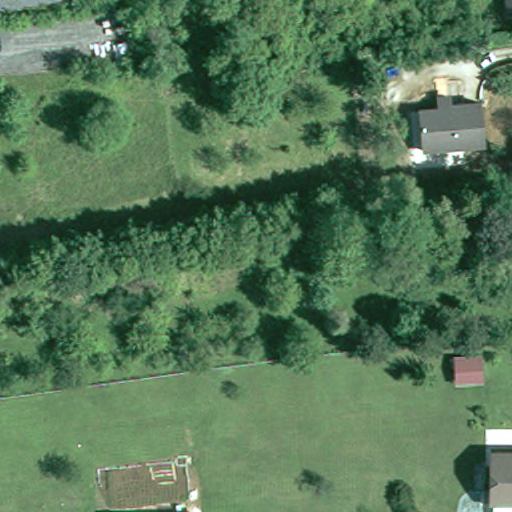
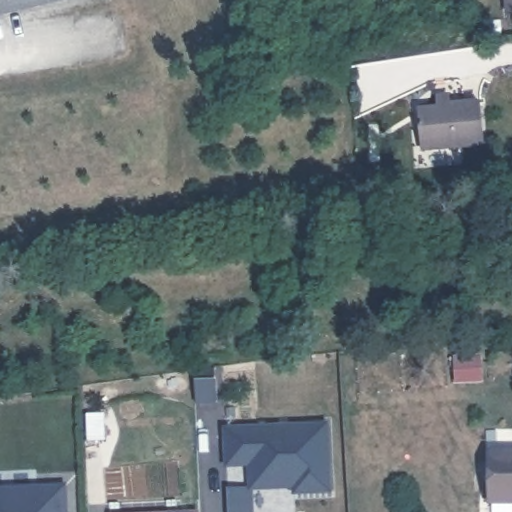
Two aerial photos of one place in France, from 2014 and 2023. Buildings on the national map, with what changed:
unchanged [(0,0),(42,0),(0,10),(0,0)]
unchanged [(512,0),(512,13),(510,13),(509,0),(512,0)]
unchanged [(425,150),(423,112),(441,110),(440,98),(452,98),(453,106),(483,104),(487,146),(425,150)]
unchanged [(315,237),(313,224),(334,221),(335,234),(315,237)]
unchanged [(461,257),(457,232),(480,229),(484,254),(461,257)]
new [(198,407),(196,384),(196,373),(216,371),(216,383),(218,406),(198,407)]
new [(253,476),(252,461),(229,462),(227,425),(330,420),(333,487),(296,489),(296,484),(254,486),(255,512),(231,512),(230,486),(253,485),(253,476)]
unchanged [(493,499),(493,450),(512,450),(512,499),(493,499)]
new [(0,487),(66,484),(67,512),(0,512),(0,487)]

